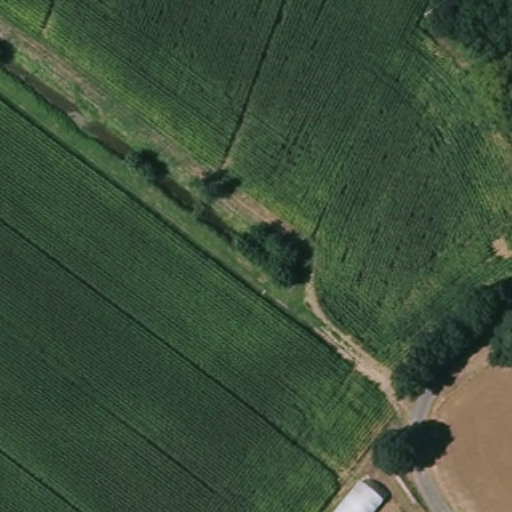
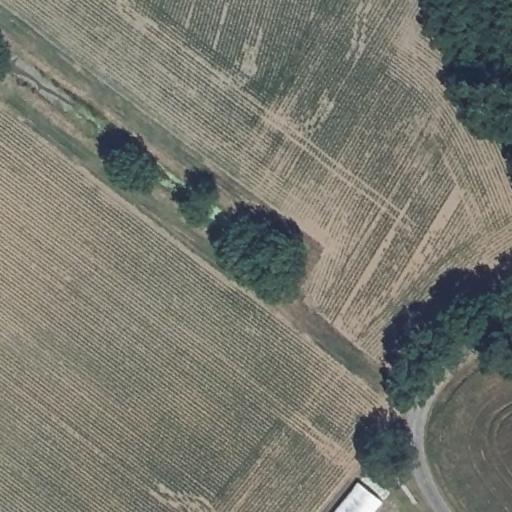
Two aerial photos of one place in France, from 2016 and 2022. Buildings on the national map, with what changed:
unchanged [(384,495),(371,512),(333,512),(362,476),(384,495)]

